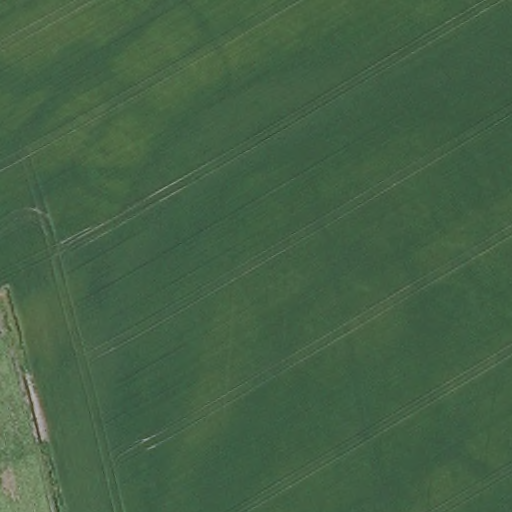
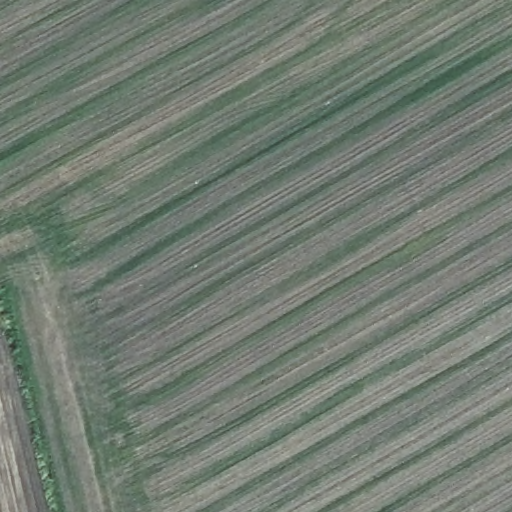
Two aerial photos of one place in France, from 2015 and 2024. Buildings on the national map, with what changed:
[]

